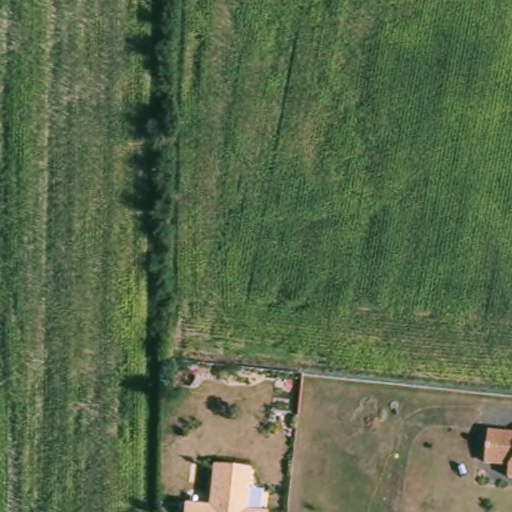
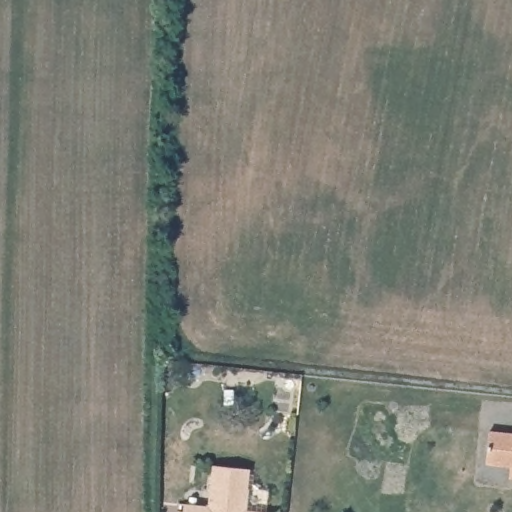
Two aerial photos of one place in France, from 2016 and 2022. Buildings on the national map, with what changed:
unchanged [(490,427),(512,429),(512,473),(510,473),(510,461),(486,458),(490,427)]
unchanged [(184,504),(208,506),(212,466),(249,470),(245,511),(255,512),(183,512),(184,504)]

